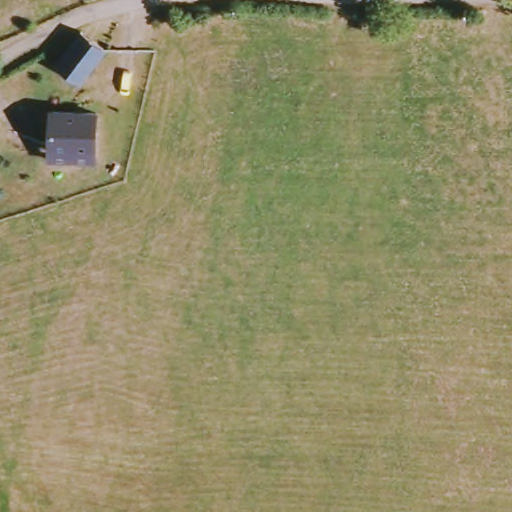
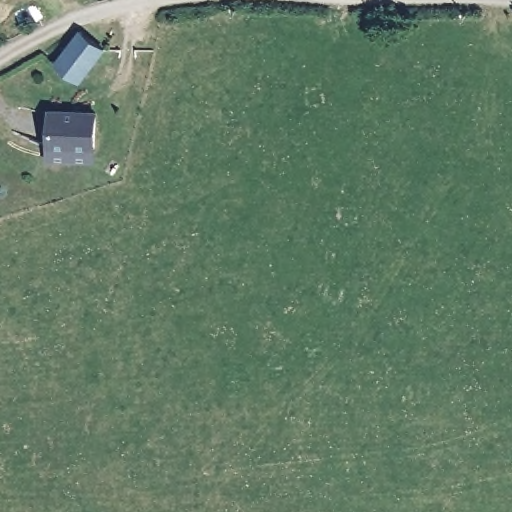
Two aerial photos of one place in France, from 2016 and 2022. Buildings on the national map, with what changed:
unchanged [(80,81),(57,63),(81,31),(104,49),(80,81)]
unchanged [(48,159),(49,146),(51,111),(96,113),(94,148),(94,161),(48,159)]

